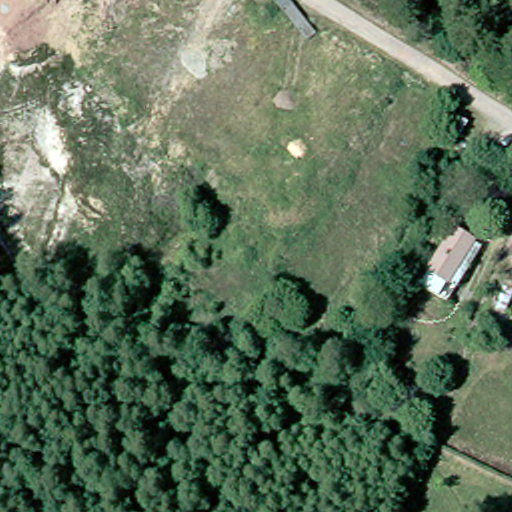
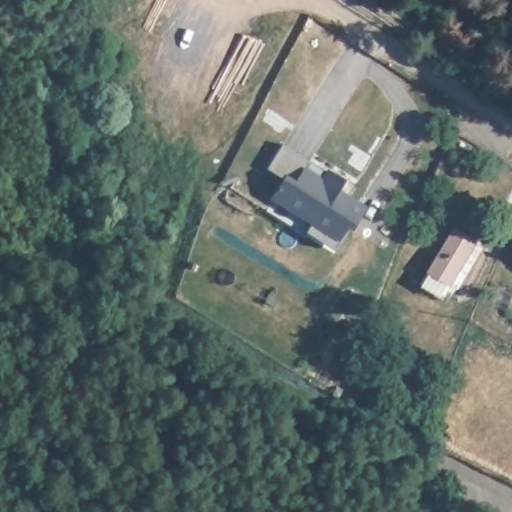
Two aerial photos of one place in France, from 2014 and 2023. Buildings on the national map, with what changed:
new [(367,194),(340,242),(336,249),(305,231),(310,223),(270,198),(280,177),(267,168),(280,144),(323,169),(367,194)]
unchanged [(446,297),(415,281),(447,224),(467,233),(475,238),(457,270),(458,271),(446,297)]
unchanged [(508,256),(512,243),(512,257),(508,256)]

